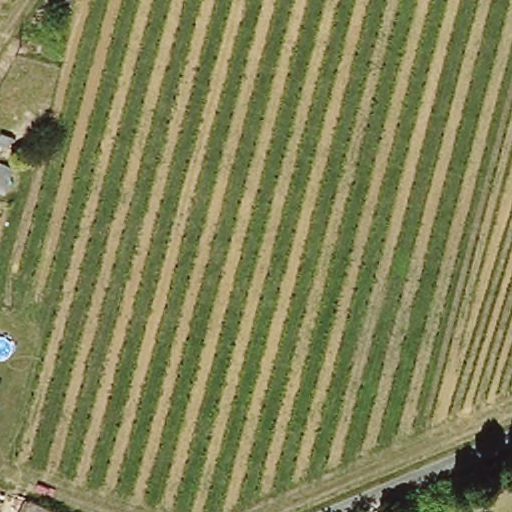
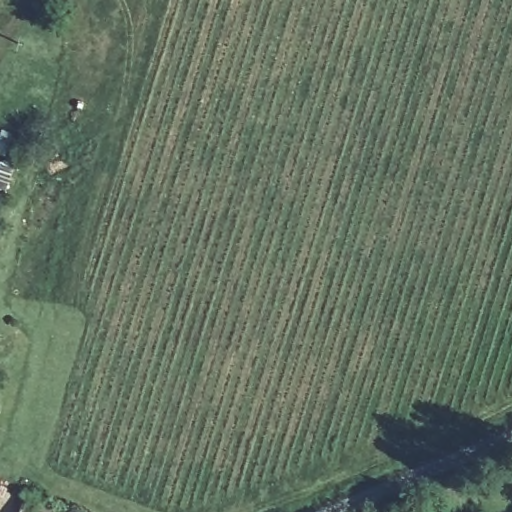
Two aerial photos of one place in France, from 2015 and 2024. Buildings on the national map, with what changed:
unchanged [(56,512),(15,512),(20,498),(56,512)]

